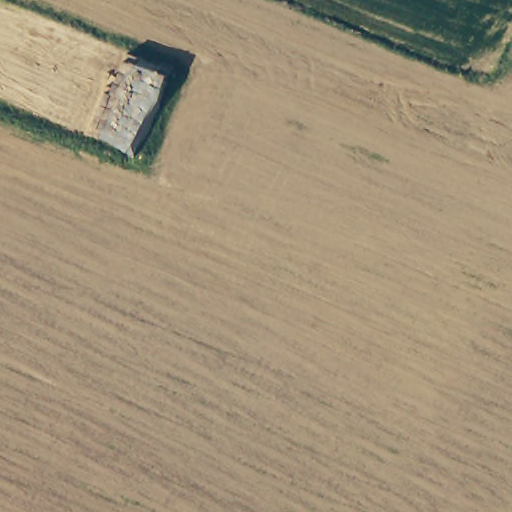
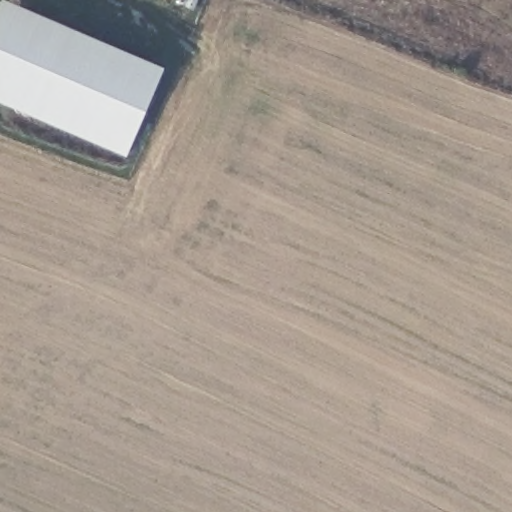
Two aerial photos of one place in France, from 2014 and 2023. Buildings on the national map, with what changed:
new [(124,158),(0,105),(0,1),(0,0),(163,69),(124,158)]

